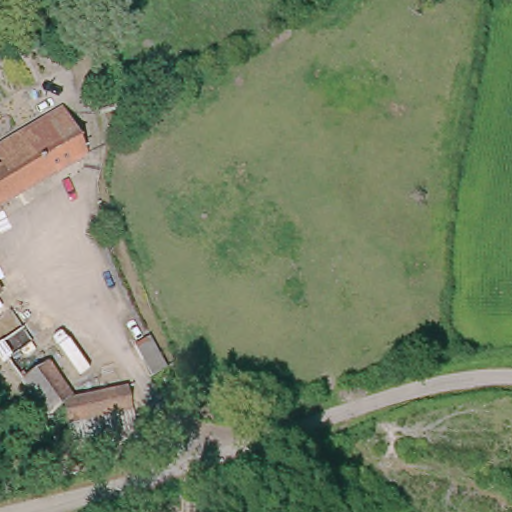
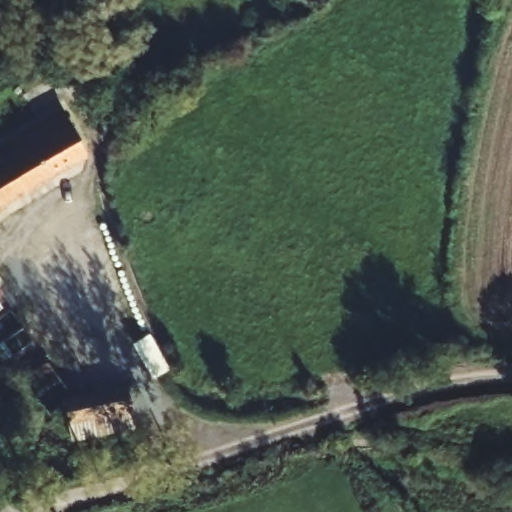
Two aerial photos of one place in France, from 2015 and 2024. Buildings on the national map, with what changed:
unchanged [(0,167),(0,158),(11,150),(26,139),(34,150),(62,131),(77,155),(80,160),(0,214),(0,174),(3,171),(0,167)]
unchanged [(0,290),(83,408),(75,414),(52,430),(38,410),(29,397),(0,357),(0,290)]
unchanged [(138,390),(148,418),(87,438),(75,414),(83,408),(138,390)]

